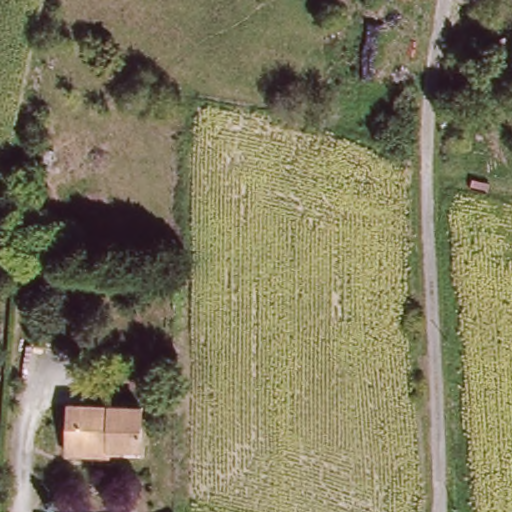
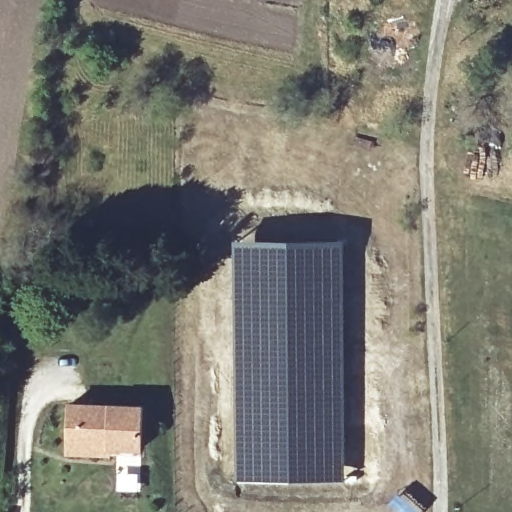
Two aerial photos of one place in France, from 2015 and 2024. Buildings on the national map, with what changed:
new [(235,239),(347,237),(345,483),(232,482),(235,239)]
unchanged [(69,462),(69,454),(70,413),(73,410),(143,410),(143,454),(113,454),(113,462),(69,462)]

